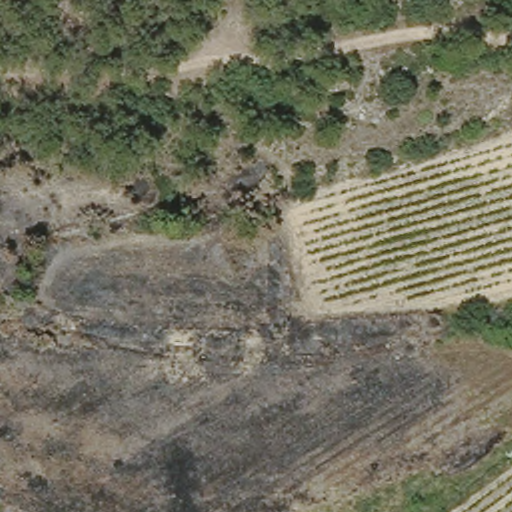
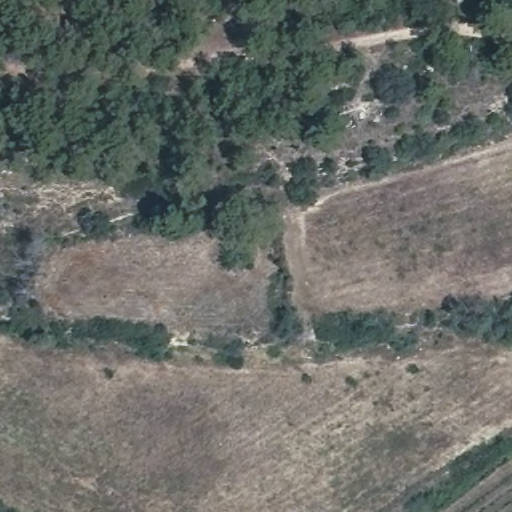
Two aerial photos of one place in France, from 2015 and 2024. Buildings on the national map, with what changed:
unchanged [(92,37),(66,44),(57,1),(59,0),(86,0),(92,37)]

